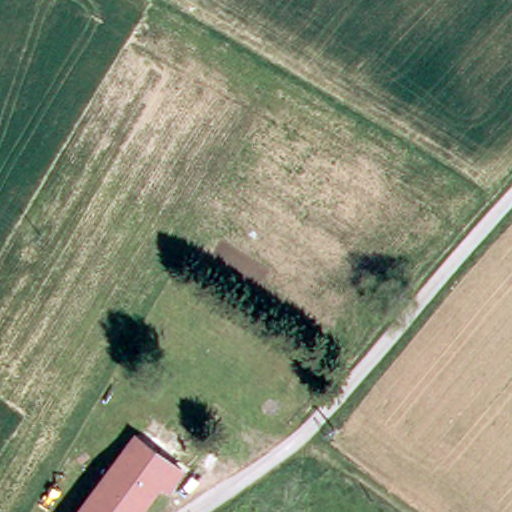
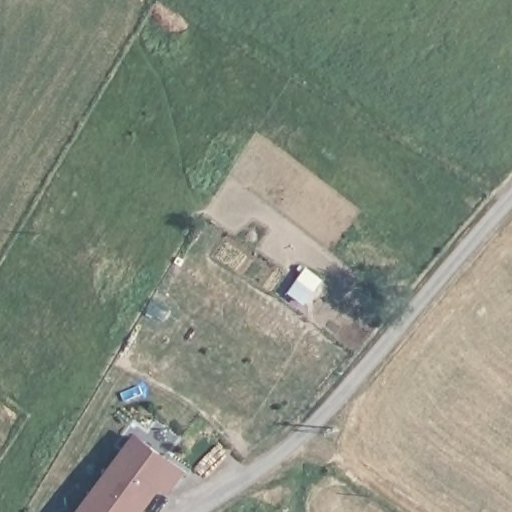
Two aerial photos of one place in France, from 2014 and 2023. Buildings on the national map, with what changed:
unchanged [(148,504),(108,477),(136,437),(183,468),(170,489),(163,484),(148,504)]
unchanged [(108,477),(148,504),(142,512),(83,512),(108,477)]

